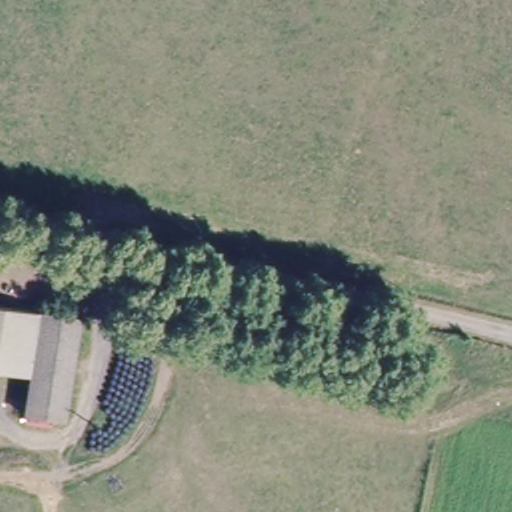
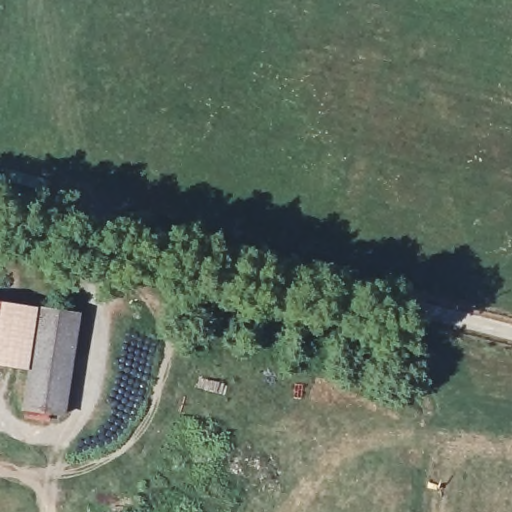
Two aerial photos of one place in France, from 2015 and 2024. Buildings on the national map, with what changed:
unchanged [(42,331),(35,378),(0,368),(0,295),(46,305),(42,331)]
unchanged [(68,409),(30,402),(35,378),(42,331),(46,305),(57,307),(85,312),(80,347),(68,409)]

